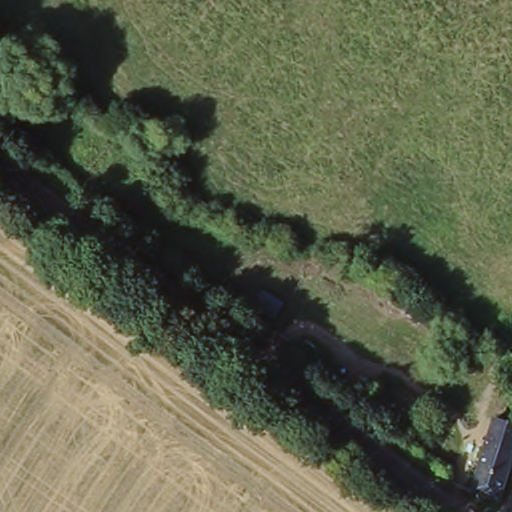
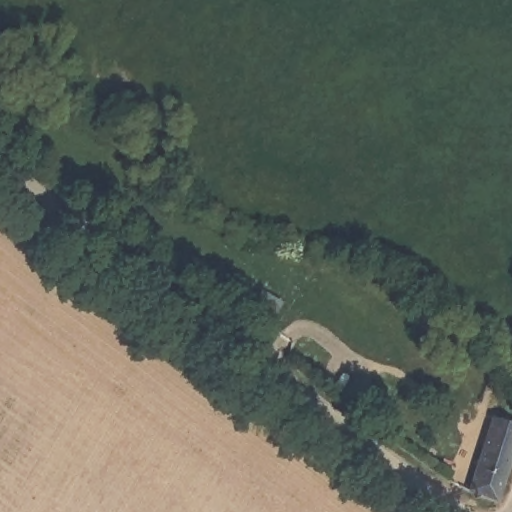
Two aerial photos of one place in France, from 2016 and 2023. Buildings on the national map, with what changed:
unchanged [(495,429),(512,435),(512,458),(510,459),(490,505),(463,495),(495,429)]

